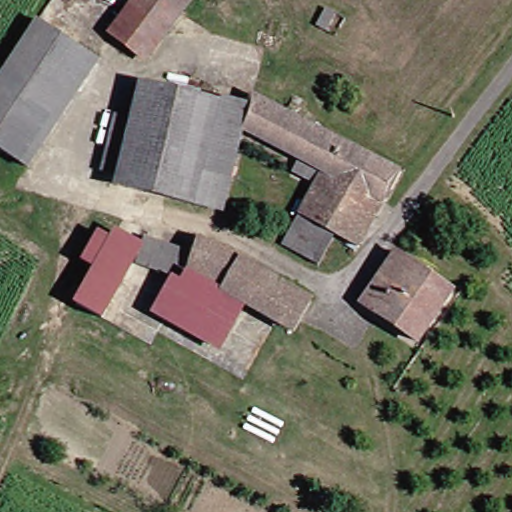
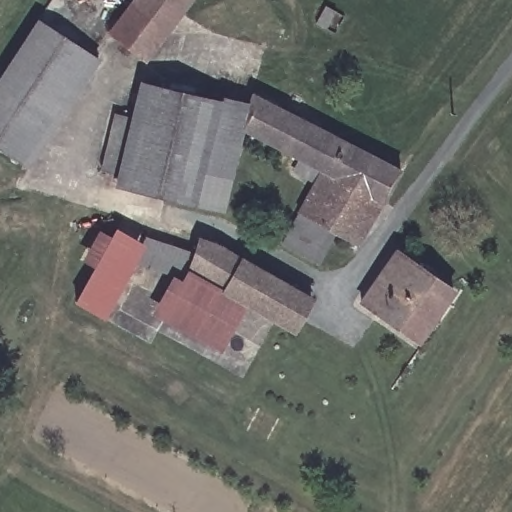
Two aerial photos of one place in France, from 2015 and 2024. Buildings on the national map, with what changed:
unchanged [(145,56),(109,30),(131,0),(186,0),(145,56)]
unchanged [(0,151),(0,81),(13,60),(37,20),(103,56),(70,107),(31,168),(0,151)]
unchanged [(135,187),(108,182),(98,178),(114,115),(132,120),(142,81),(221,95),(194,201),(135,187)]
unchanged [(218,209),(194,201),(221,95),(252,102),(243,124),(218,209)]
unchanged [(322,170),(243,124),(252,102),(255,95),(398,172),(359,251),(333,235),(300,215),(322,170)]
unchanged [(333,235),(317,263),(283,245),(300,215),(333,235)]
unchanged [(97,297),(81,288),(104,246),(111,234),(139,249),(131,262),(109,303),(97,297)]
unchanged [(195,257),(199,235),(231,252),(230,289),(193,270),(195,257)]
unchanged [(174,277),(143,270),(157,242),(195,257),(193,270),(189,281),(174,277)]
unchanged [(231,252),(308,296),(294,325),(247,298),(230,289),(231,252)]
unchanged [(395,253),(450,290),(420,338),(365,301),(395,253)]
unchanged [(189,281),(193,270),(230,289),(247,298),(219,350),(153,311),(174,277),(189,281)]

